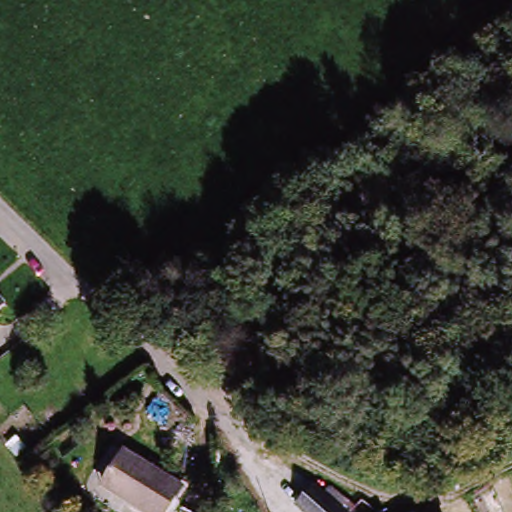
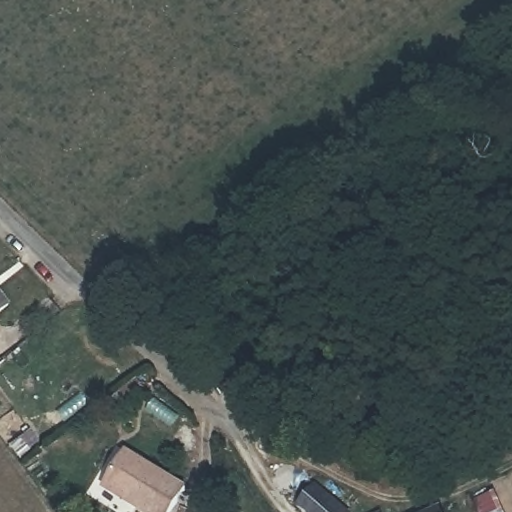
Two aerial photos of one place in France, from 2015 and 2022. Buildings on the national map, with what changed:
unchanged [(5,306),(0,309),(0,300),(5,306)]
unchanged [(125,453),(182,493),(170,512),(132,512),(127,509),(99,490),(104,483),(125,453)]
unchanged [(330,484),(359,511),(358,512),(303,512),(271,482),(290,463),(322,493),(330,484)]
unchanged [(451,512),(441,512),(450,508),(451,512)]

